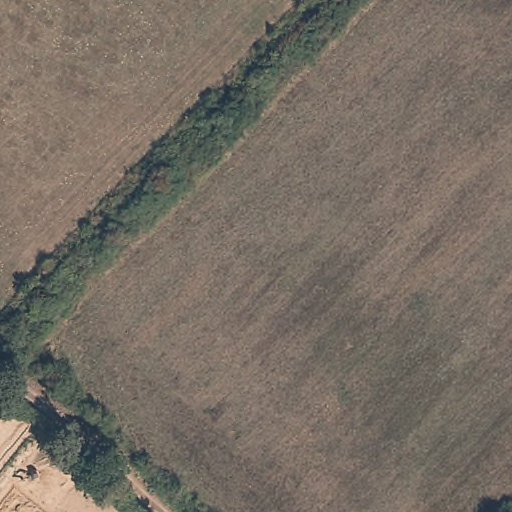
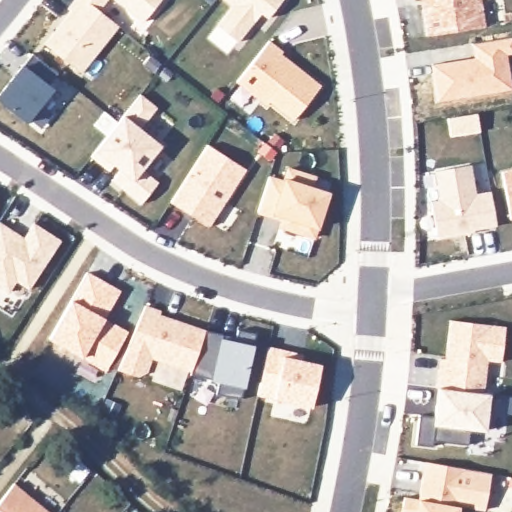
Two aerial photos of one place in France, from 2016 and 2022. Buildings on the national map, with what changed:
new [(64,10),(73,0),(106,0),(98,9),(118,26),(80,75),(43,46),(68,13),(64,10)]
new [(112,0),(160,0),(142,23),(112,0)]
new [(223,0),(283,0),(267,19),(260,14),(238,43),(215,28),(231,7),(223,0)]
new [(427,36),(422,7),(426,6),(425,0),(480,0),(484,27),(427,36)]
new [(431,65),(474,58),(472,43),(512,37),(512,55),(508,56),(512,80),(512,90),(438,101),(431,65)]
new [(270,40),(282,51),(281,54),(322,86),(295,122),(270,102),(266,107),(235,82),(270,40)]
new [(31,55),(54,75),(44,83),(52,89),(26,124),(0,104),(0,91),(19,66),(31,55)]
new [(140,95),(155,108),(137,127),(160,146),(140,173),(157,183),(141,205),(109,181),(115,170),(113,167),(109,173),(89,158),(140,95)]
new [(206,144),(246,169),(208,228),(168,203),(206,144)]
new [(439,201),(434,172),(470,165),(475,195),(489,192),(495,226),(474,230),(474,233),(437,239),(430,202),(439,201)]
new [(280,221),(256,214),(268,175),(282,177),(286,166),(317,176),(316,187),(330,192),(318,230),(315,240),(278,228),(280,221)]
new [(512,174),(512,222),(506,223),(498,176),(512,174)]
new [(31,223),(60,241),(27,290),(15,282),(6,294),(0,290),(0,223),(22,238),(31,223)]
new [(142,306),(159,312),(158,315),(204,330),(234,337),(236,329),(253,334),(252,345),(243,389),(238,400),(213,395),(215,384),(209,381),(188,374),(152,361),(147,373),(136,379),(114,371),(142,306)]
new [(443,355),(447,317),(502,323),(497,357),(484,356),(480,388),(435,383),(433,383),(435,366),(437,355),(443,355)]
new [(304,354),(302,360),(321,364),(313,409),(273,400),(257,395),(267,346),(304,354)]
new [(415,411),(431,413),(435,383),(480,388),(490,390),(487,408),(484,408),(481,427),(466,425),(464,441),(430,437),(429,443),(412,441),(415,411)]
new [(403,498),(418,500),(425,462),(491,474),(483,511),(458,506),(457,512),(401,512),(403,498)]
unchanged [(47,512),(0,512),(0,501),(13,483),(47,512)]

